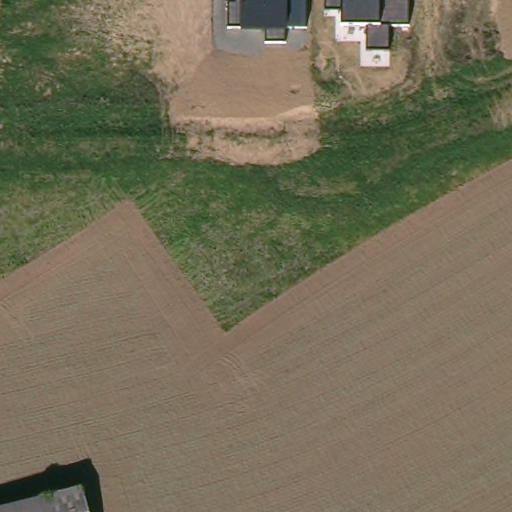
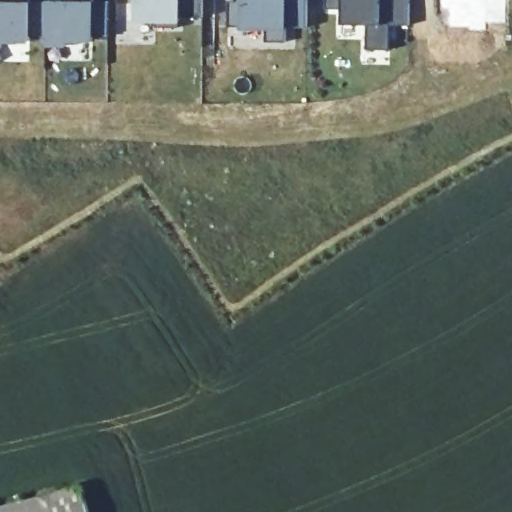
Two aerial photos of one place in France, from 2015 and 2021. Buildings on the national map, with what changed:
new [(11,41),(11,47),(0,47),(0,3),(6,3),(6,0),(38,0),(38,2),(54,1),(70,1),(70,0),(101,0),(101,1),(117,1),(117,36),(101,36),(101,40),(74,40),(74,46),(54,46),(54,37),(37,37),(37,41),(11,41)]
unchanged [(211,18),(188,18),(187,28),(165,28),(165,22),(145,22),(145,0),(212,0),(211,18)]
unchanged [(285,26),(285,42),(265,43),(265,28),(227,27),(228,5),(236,5),(237,0),(305,0),(305,27),(285,26)]
unchanged [(410,24),(389,24),(388,50),(365,50),(365,22),(343,22),(343,0),(410,0),(410,24)]
unchanged [(99,512),(61,512),(56,493),(91,482),(99,512)]
unchanged [(61,512),(0,512),(0,507),(56,493),(61,512)]

